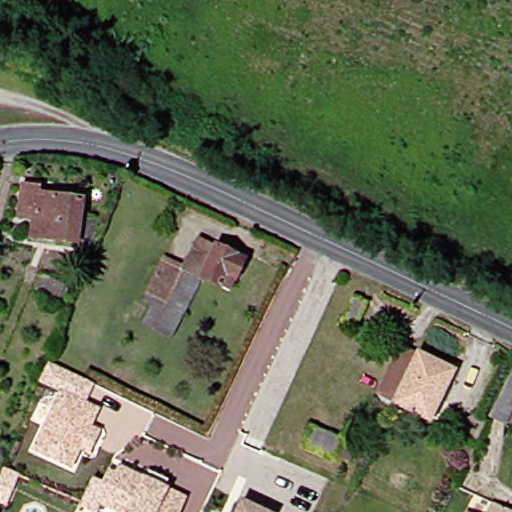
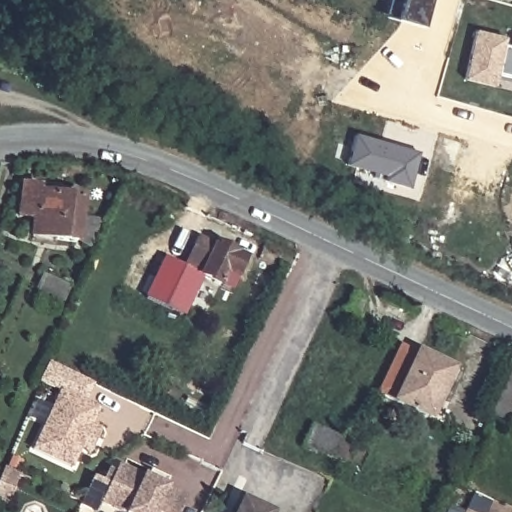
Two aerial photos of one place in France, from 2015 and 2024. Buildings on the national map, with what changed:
new [(383,17),(388,0),(427,0),(419,29),(393,21),(383,17)]
new [(505,39),(503,45),(512,47),(512,84),(495,80),(493,87),(463,80),(475,31),(505,39)]
new [(354,135),(417,153),(408,190),(381,182),(383,176),(344,166),(354,135)]
unchanged [(42,195),(83,200),(78,242),(34,237),(36,219),(21,217),(26,186),(42,189),(42,195)]
unchanged [(176,287),(169,300),(151,290),(168,258),(185,266),(199,240),(216,249),(217,245),(246,260),(231,292),(203,279),(199,288),(195,296),(176,287)]
unchanged [(155,305),(146,300),(151,290),(169,300),(176,287),(195,296),(174,336),(146,323),(155,305)]
unchanged [(364,303),(352,327),(340,321),(351,297),(364,303)]
unchanged [(449,371),(426,419),(393,404),(417,355),(449,371)]
unchanged [(85,450),(77,469),(38,451),(64,391),(44,382),(52,362),(96,384),(88,402),(104,409),(96,426),(105,430),(94,455),(85,450)]
unchanged [(501,407),(489,400),(503,371),(509,374),(512,375),(512,412),(508,410),(501,407)]
unchanged [(352,441),(343,462),(312,449),(320,428),(352,441)]
unchanged [(100,511),(83,503),(97,475),(106,480),(112,467),(118,471),(122,463),(150,477),(153,470),(171,478),(168,485),(171,487),(190,496),(183,510),(182,512),(124,512),(104,502),(100,511)]
unchanged [(14,472),(2,502),(0,502),(0,466),(14,472)]
unchanged [(261,512),(230,512),(235,500),(261,512)]
unchanged [(493,503),(512,511),(512,512),(490,512),(493,503)]

